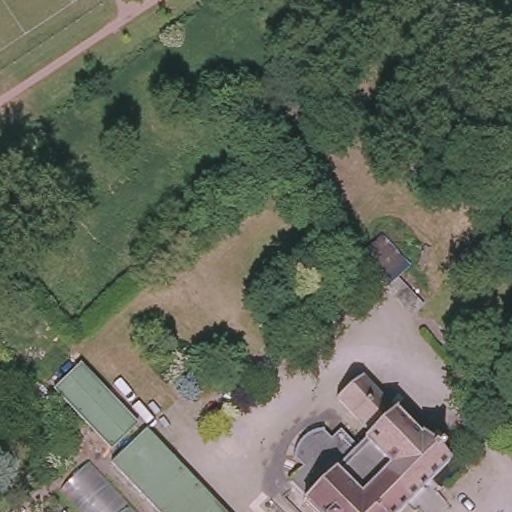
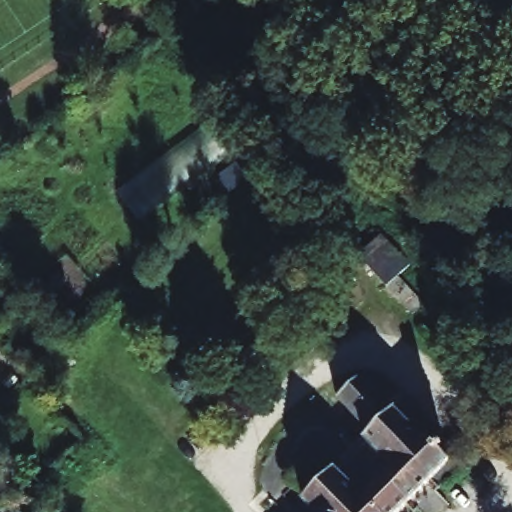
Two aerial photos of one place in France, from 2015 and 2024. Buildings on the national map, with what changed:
new [(359,255),(382,234),(411,265),(388,286),(359,255)]
new [(388,287),(399,277),(424,303),(413,314),(388,287)]
demolished [(136,416),(110,440),(102,431),(54,382),(80,357),(130,410),(134,414),(136,416)]
unchanged [(370,432),(333,397),(356,374),(418,434),(421,431),(446,456),(452,450),(465,463),(455,473),(417,512),(413,512),(407,506),(401,512),(316,512),(304,500),(370,432)]
demolished [(165,512),(111,455),(143,423),(228,512),(165,512)]
demolished [(90,460),(137,512),(78,512),(57,490),(90,460)]

